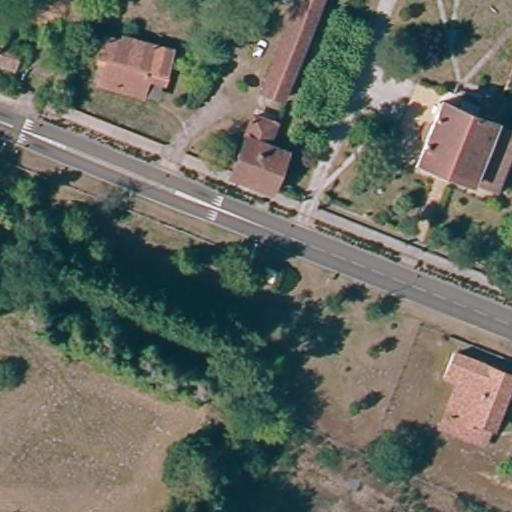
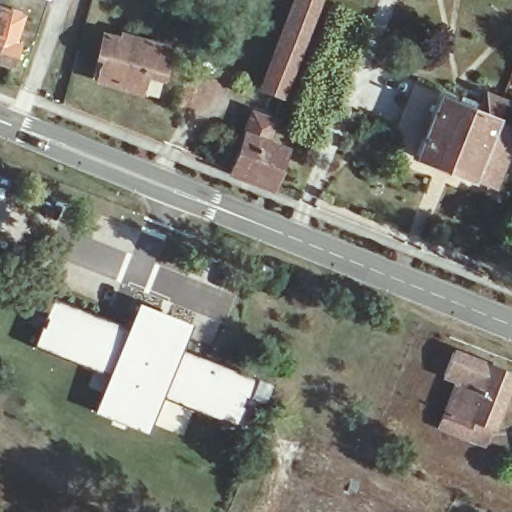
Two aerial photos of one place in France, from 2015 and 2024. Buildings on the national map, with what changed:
demolished [(28,19),(33,0),(83,0),(76,30),(28,19)]
unchanged [(262,83),(293,0),(318,0),(283,91),(262,83)]
unchanged [(8,8),(0,30),(0,6),(8,8)]
unchanged [(17,41),(10,62),(0,59),(0,36),(17,41)]
unchanged [(142,91),(102,79),(96,78),(102,57),(107,36),(124,41),(125,36),(170,49),(162,77),(157,96),(142,91)]
unchanged [(487,187),(466,179),(409,156),(432,98),(487,120),(485,123),(509,132),(487,187)]
unchanged [(268,188),(227,171),(250,112),(272,121),(265,142),(283,149),(268,188)]
unchanged [(273,274),(264,271),(267,261),(277,265),(273,274)]
new [(52,299),(118,324),(101,371),(34,344),(52,299)]
new [(137,301),(191,323),(182,347),(162,397),(147,433),(93,410),(137,301)]
new [(182,347),(274,384),(266,403),(248,396),(236,424),(162,397),(182,347)]
unchanged [(442,422),(447,410),(461,376),(448,371),(457,348),(512,370),(512,378),(495,422),(492,421),(485,439),(467,432),(442,422)]

